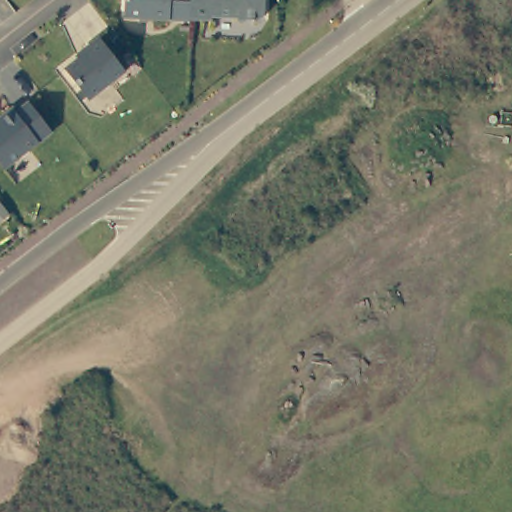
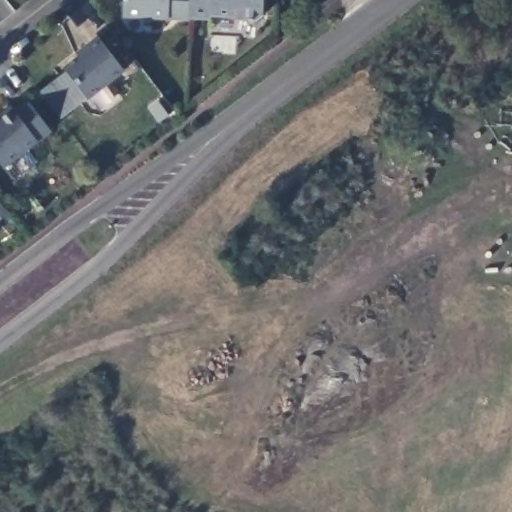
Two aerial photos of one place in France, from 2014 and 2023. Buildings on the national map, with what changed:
unchanged [(127,16),(128,0),(193,0),(192,20),(127,16)]
unchanged [(193,0),(267,0),(267,16),(262,21),(240,20),(241,15),(215,14),(215,23),(192,22),(192,20),(193,0)]
unchanged [(122,70),(87,99),(63,69),(87,50),(86,48),(97,38),(122,70)]
unchanged [(14,112),(27,101),(50,131),(2,168),(0,165),(0,116),(11,108),(14,112)]

